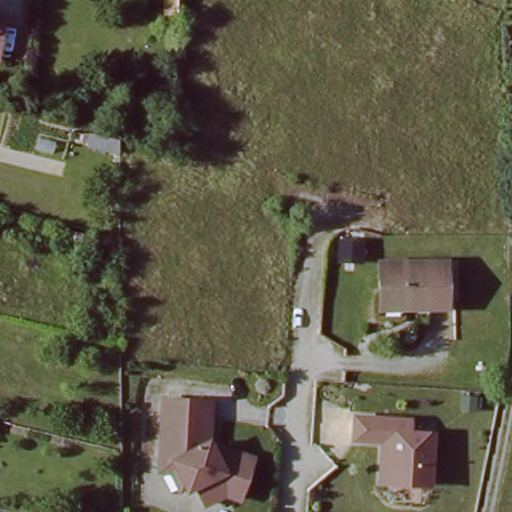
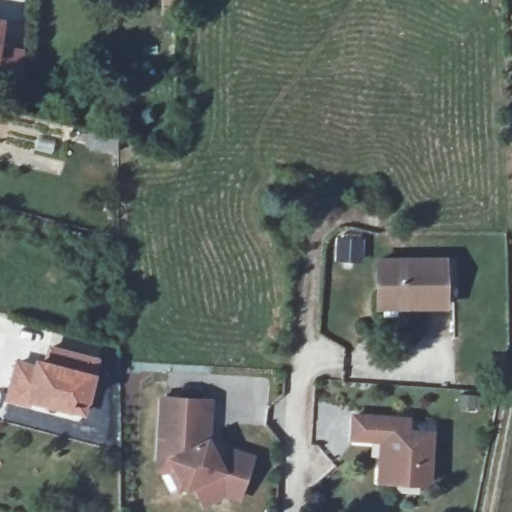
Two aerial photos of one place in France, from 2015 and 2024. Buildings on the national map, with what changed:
unchanged [(0,17),(5,18),(0,54),(0,17)]
unchanged [(377,289),(380,250),(450,258),(445,307),(412,304),(375,300),(377,289)]
new [(34,357),(47,359),(50,344),(100,357),(96,372),(81,417),(34,404),(32,409),(4,402),(14,359),(33,363),(34,357)]
unchanged [(152,459),(157,455),(162,393),(208,398),(203,444),(205,454),(211,453),(247,474),(227,512),(213,504),(188,512),(180,490),(172,491),(170,487),(164,489),(152,459)]
unchanged [(435,433),(436,486),(378,488),(379,446),(353,448),(351,418),(414,418),(415,433),(435,433)]

